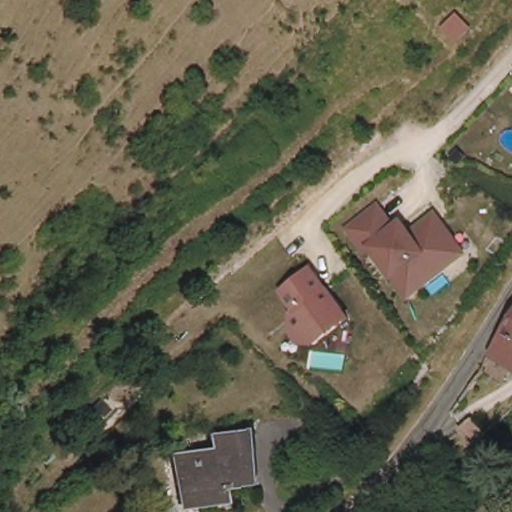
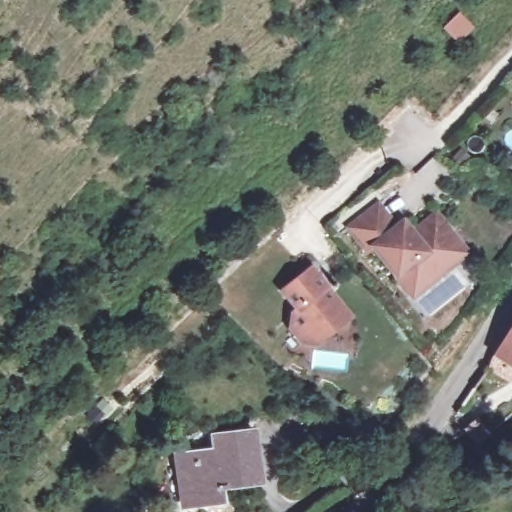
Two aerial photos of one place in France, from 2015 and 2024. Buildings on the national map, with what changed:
unchanged [(455,15),(463,24),(447,40),(438,31),(455,15)]
unchanged [(396,278),(373,248),(367,252),(349,229),(378,206),(396,229),(403,223),(411,234),(436,215),(444,225),(467,254),(419,291),(412,297),(396,278)]
unchanged [(349,314),(316,340),(302,338),(291,324),(293,310),(298,305),(283,287),(311,265),(349,314)]
unchanged [(503,345),(512,330),(512,373),(493,361),(503,345)]
unchanged [(468,426),(477,418),(493,434),(480,447),(464,430),(468,426)]
unchanged [(173,450),(216,447),(216,430),(256,427),(258,473),(228,475),(228,481),(219,481),(219,496),(176,499),(173,450)]

